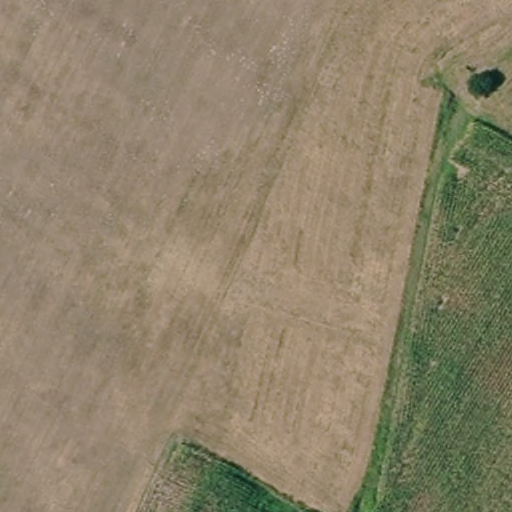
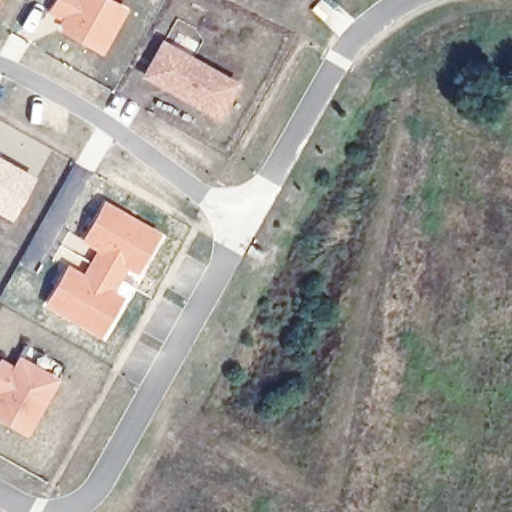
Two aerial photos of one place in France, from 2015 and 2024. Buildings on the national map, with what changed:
new [(115,0),(130,9),(103,56),(59,30),(61,23),(47,13),(54,0),(115,0)]
new [(235,81),(217,114),(145,73),(163,41),(235,81)]
new [(11,221),(0,214),(0,156),(36,178),(11,221)]
new [(68,264),(83,272),(95,250),(81,241),(105,200),(162,232),(138,275),(129,270),(117,289),(126,294),(101,339),(44,305),(68,264)]
new [(15,368),(21,358),(58,379),(27,432),(9,422),(0,417),(0,362),(1,361),(15,368)]

